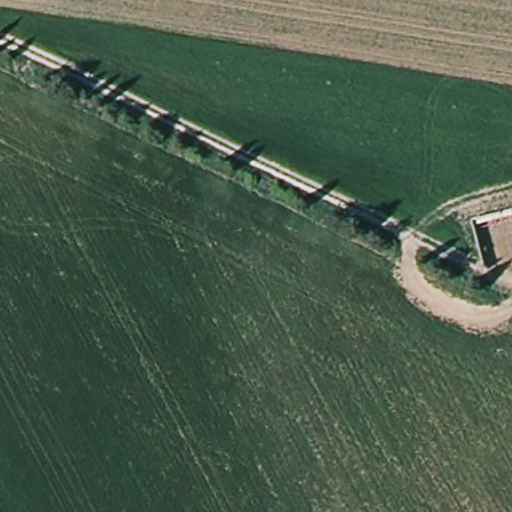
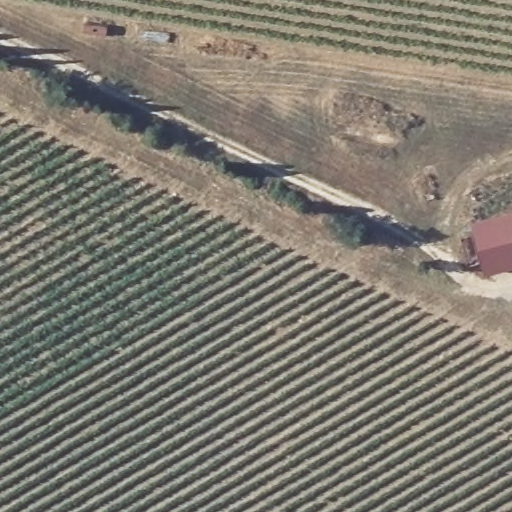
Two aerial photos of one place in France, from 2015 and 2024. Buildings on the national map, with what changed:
new [(485,274),(469,222),(512,211),(512,267),(485,274)]

